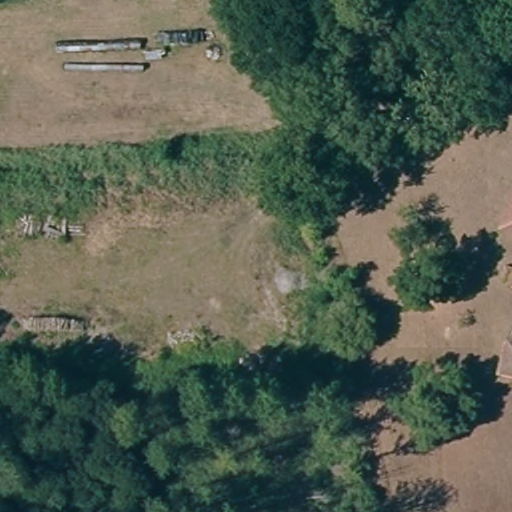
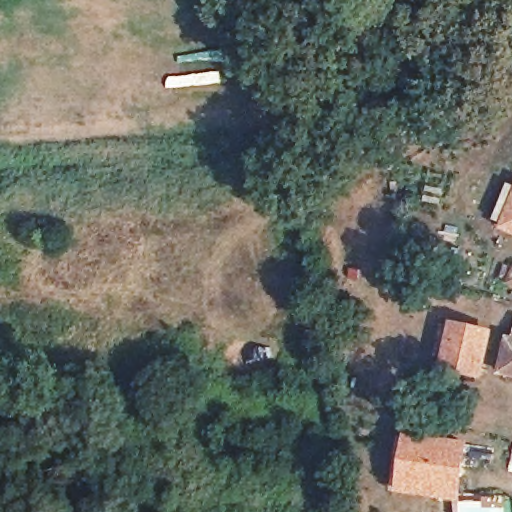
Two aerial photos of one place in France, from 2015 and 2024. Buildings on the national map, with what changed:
unchanged [(325,14),(339,35),(316,50),(302,30),(325,14)]
unchanged [(512,211),(512,234),(503,229),(512,211)]
new [(441,369),(451,320),(493,329),(483,378),(441,369)]
unchanged [(505,332),(512,334),(512,376),(496,370),(495,361),(505,332)]
new [(463,444),(457,491),(405,484),(411,438),(463,444)]

